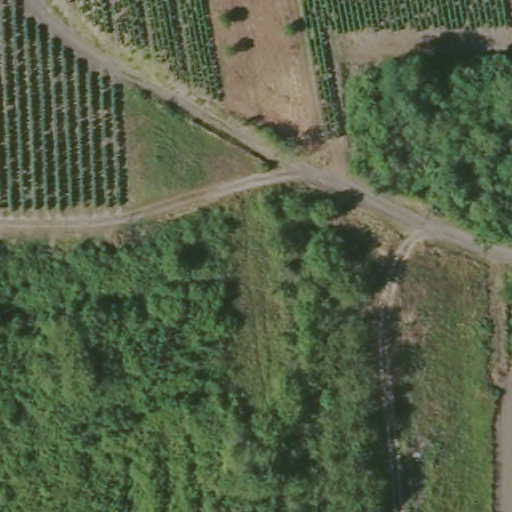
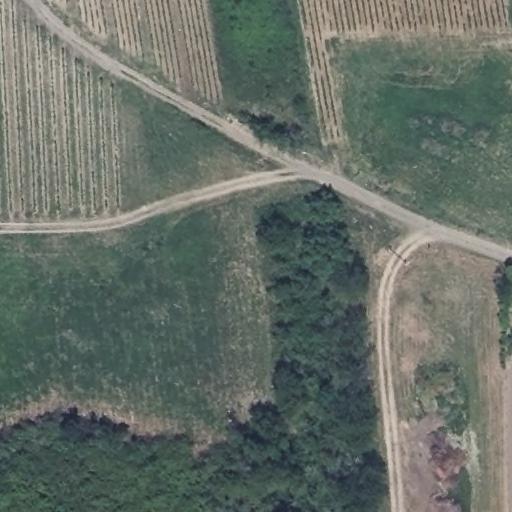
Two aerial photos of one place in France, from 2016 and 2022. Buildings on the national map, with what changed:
[]

